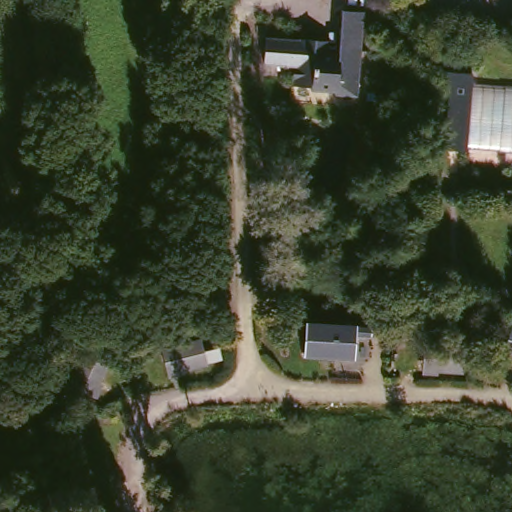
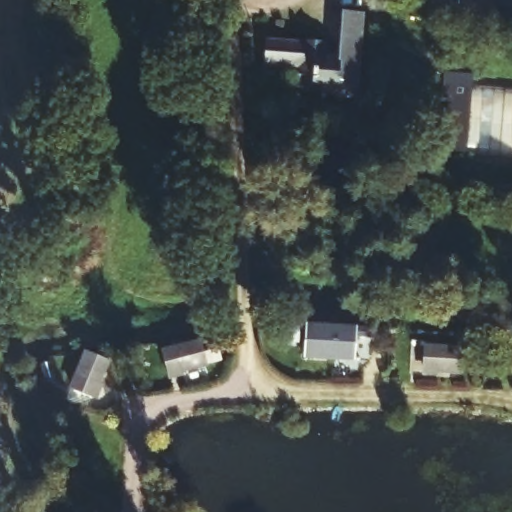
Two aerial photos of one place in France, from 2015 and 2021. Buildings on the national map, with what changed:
unchanged [(278,45),(297,45),(297,43),(319,43),(319,55),(339,55),(340,11),(361,11),(360,98),(339,98),(339,94),(315,93),(315,91),(296,91),(297,71),(279,71),(267,71),(268,44),(278,45)]
unchanged [(471,151),(443,151),(448,79),(475,80),(471,151)]
unchanged [(502,328),(512,330),(512,357),(498,355),(502,328)]
unchanged [(348,360),(305,359),(303,332),(351,332),(348,360)]
unchanged [(207,336),(213,366),(172,376),(165,346),(207,336)]
unchanged [(461,376),(417,374),(421,337),(464,336),(461,376)]
unchanged [(75,354),(103,351),(109,392),(82,395),(75,354)]

